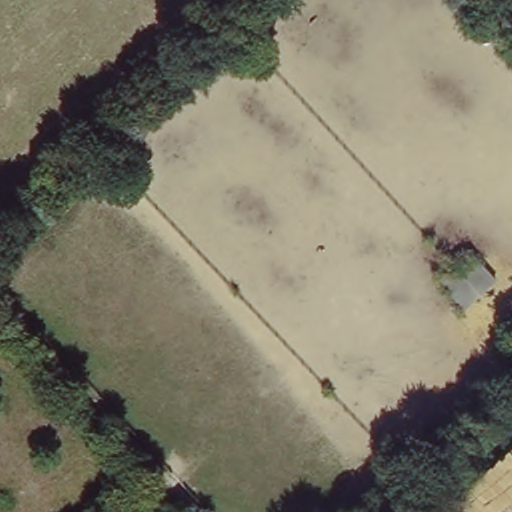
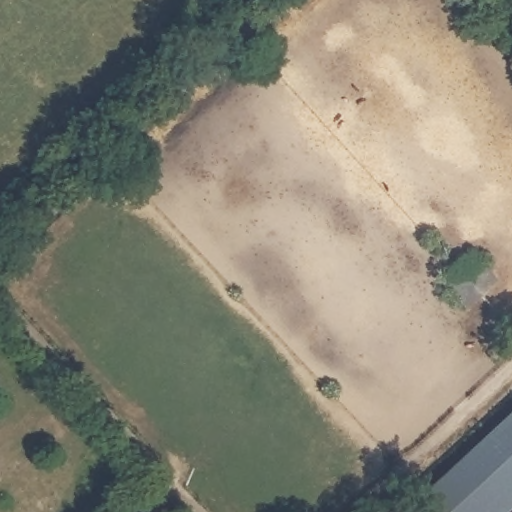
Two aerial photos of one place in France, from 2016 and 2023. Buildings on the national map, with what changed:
unchanged [(455,267),(471,251),(497,277),(482,292),(468,305),(442,280),(455,267)]
new [(512,504),(503,512),(446,512),(426,492),(512,412),(512,504)]

